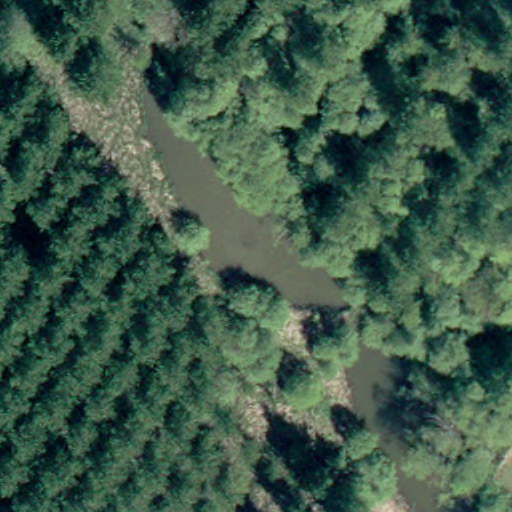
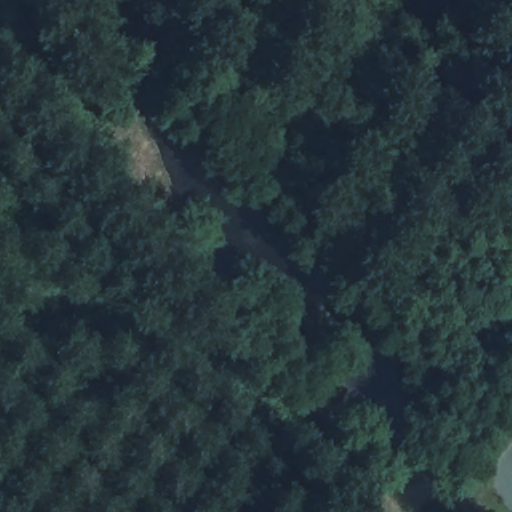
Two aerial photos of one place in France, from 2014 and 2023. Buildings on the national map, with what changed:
[]

